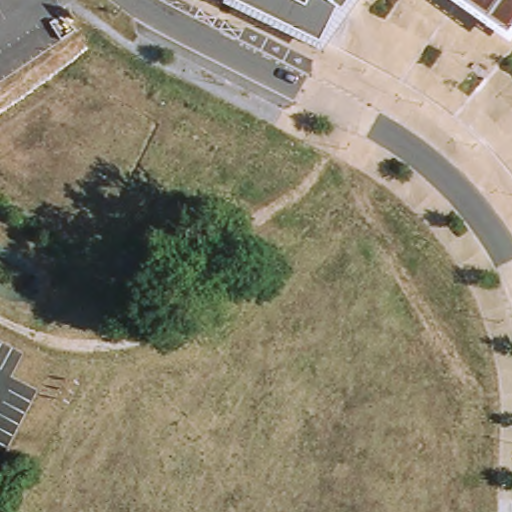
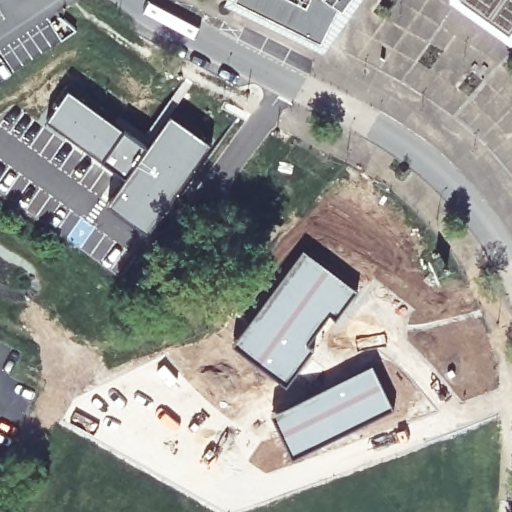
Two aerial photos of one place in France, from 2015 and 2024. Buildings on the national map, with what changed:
unchanged [(333,4),(331,6),(332,7),(335,9),(317,36),(313,41),(272,20),(229,0),(336,0),(333,4)]
unchanged [(512,2),(512,23),(506,31),(462,0),(509,0),(512,2)]
unchanged [(512,2),(509,0),(512,0),(512,2)]
new [(68,87),(124,126),(102,157),(46,118),(68,87)]
new [(126,173),(147,143),(171,113),(211,142),(147,229),(108,200),(126,173)]
new [(124,126),(147,143),(126,173),(102,157),(124,126)]
new [(302,247),(356,288),(336,314),(332,311),(310,341),(315,345),(286,381),(234,340),(302,247)]
new [(372,361),(392,404),(340,432),(292,454),(271,412),(372,361)]

